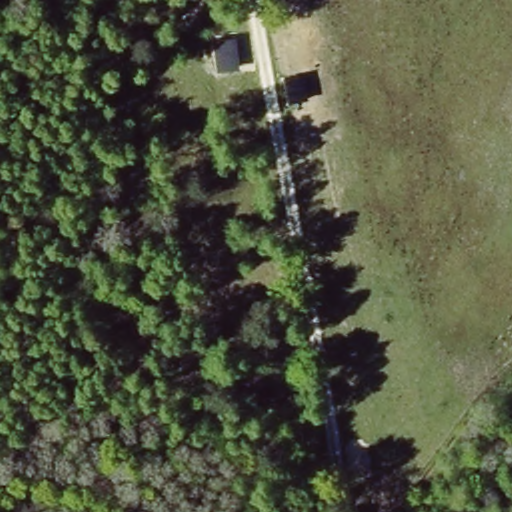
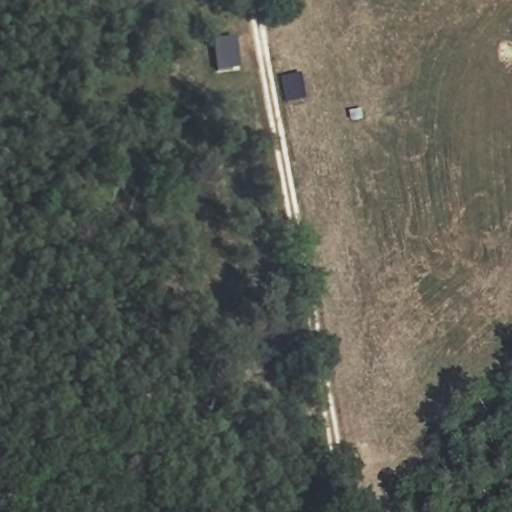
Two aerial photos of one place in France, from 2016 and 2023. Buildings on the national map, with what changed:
[]

